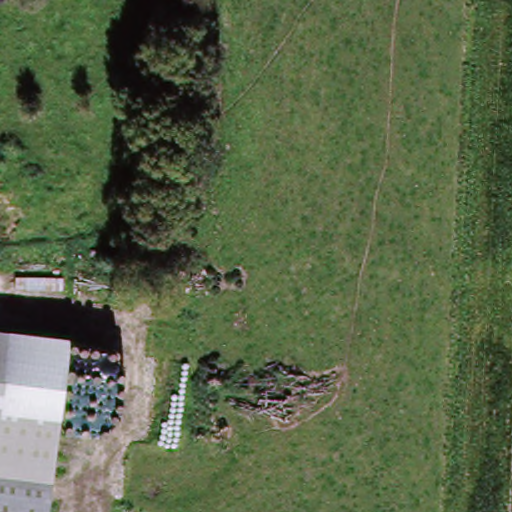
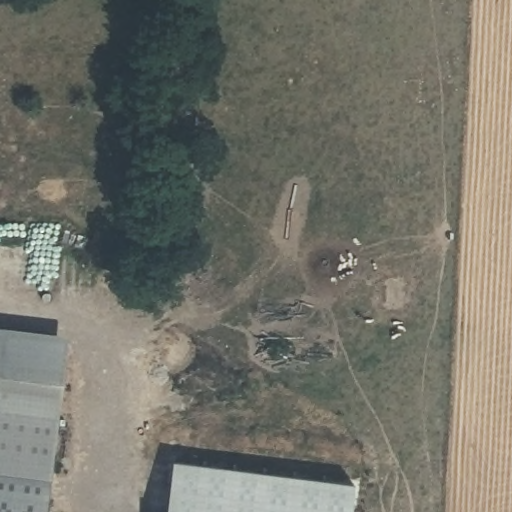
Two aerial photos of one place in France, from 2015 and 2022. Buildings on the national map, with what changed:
unchanged [(0,479),(0,321),(59,328),(45,484),(0,479)]
new [(354,488),(351,512),(170,512),(175,466),(354,488)]
unchanged [(0,479),(45,484),(42,512),(0,512),(0,479)]

